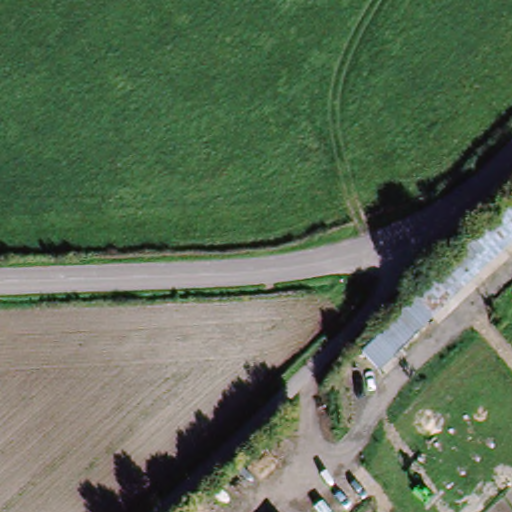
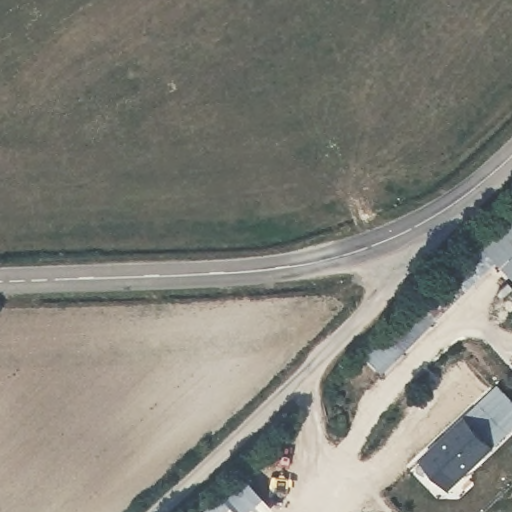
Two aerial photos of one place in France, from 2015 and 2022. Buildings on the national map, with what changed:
unchanged [(362,355),(512,204),(512,244),(380,373),(362,355)]
new [(505,270),(512,262),(512,278),(505,270)]
new [(492,383),(512,403),(512,422),(500,433),(478,411),(471,418),(464,411),(492,383)]
new [(464,411),(471,418),(478,411),(500,433),(448,484),(420,455),(464,411)]
new [(240,477),(267,505),(260,512),(203,512),(240,477)]
demolished [(246,496),(262,512),(229,512),(246,496)]

